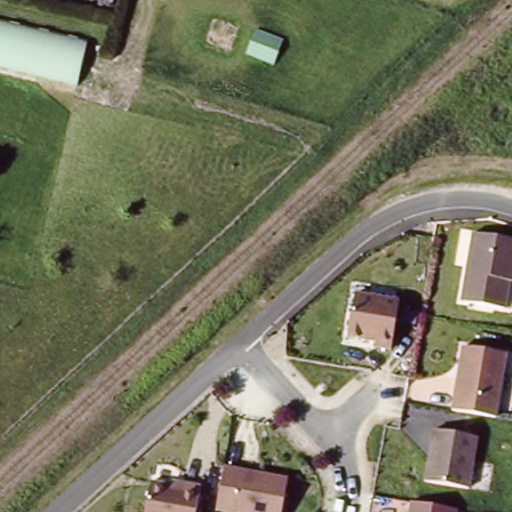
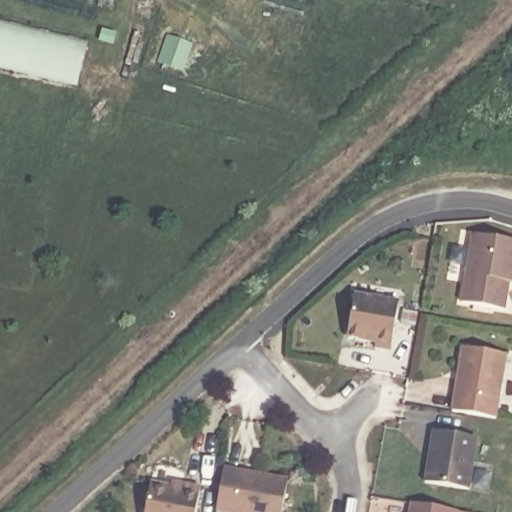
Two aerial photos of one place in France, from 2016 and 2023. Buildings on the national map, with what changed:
unchanged [(81,87),(0,70),(0,19),(91,42),(81,87)]
unchanged [(512,240),(512,283),(510,282),(507,310),(462,301),(474,234),(512,240)]
unchanged [(353,293),(400,301),(392,344),(345,337),(353,293)]
unchanged [(461,347),(507,355),(498,417),(451,408),(461,347)]
unchanged [(431,431),(479,437),(470,488),(423,481),(431,431)]
unchanged [(222,466),(287,478),(282,512),(230,512),(215,509),(222,466)]
unchanged [(150,482),(162,483),(162,479),(200,486),(196,512),(144,512),(150,482)]
unchanged [(412,502),(458,510),(458,512),(410,512),(412,502)]

